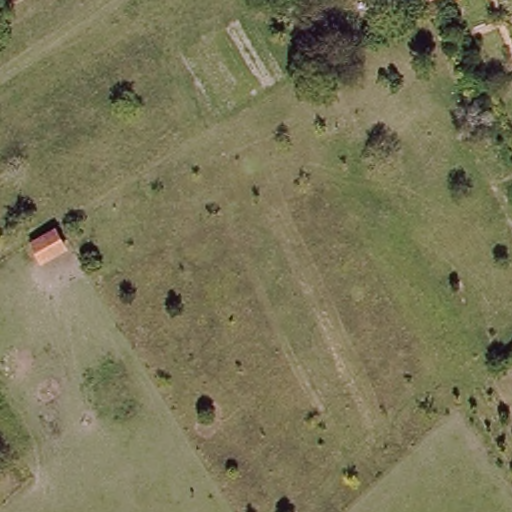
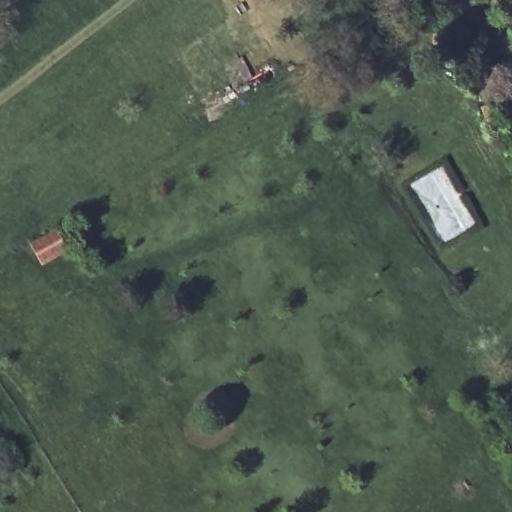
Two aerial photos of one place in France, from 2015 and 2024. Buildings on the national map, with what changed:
unchanged [(426,0),(435,0),(428,3),(426,0)]
unchanged [(69,251),(43,266),(29,243),(55,227),(69,251)]

